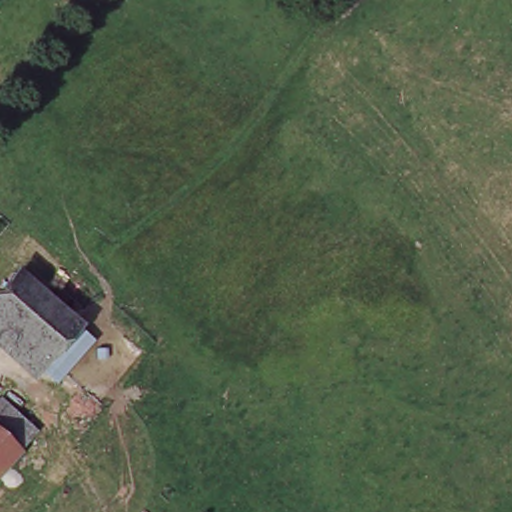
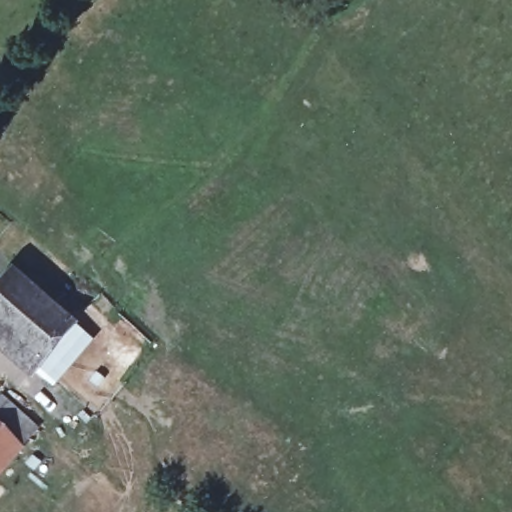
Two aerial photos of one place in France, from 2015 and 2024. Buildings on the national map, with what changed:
unchanged [(35,361),(0,330),(0,293),(14,278),(69,326),(67,328),(37,362),(35,361)]
unchanged [(32,365),(35,361),(37,362),(67,328),(85,345),(50,383),(34,367),(32,365)]
unchanged [(22,422),(30,428),(15,445),(0,464),(0,404),(22,422)]

